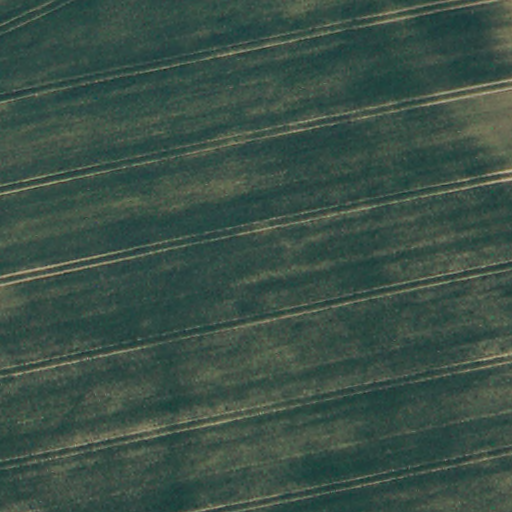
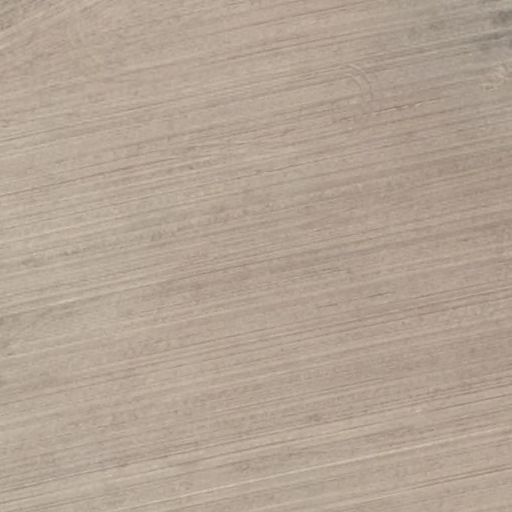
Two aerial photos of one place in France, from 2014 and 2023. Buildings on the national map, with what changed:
[]

